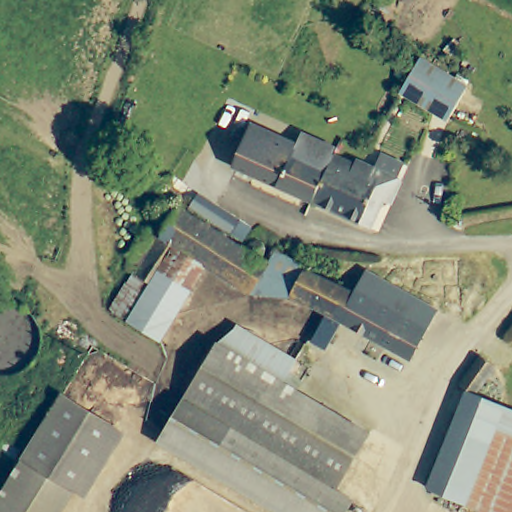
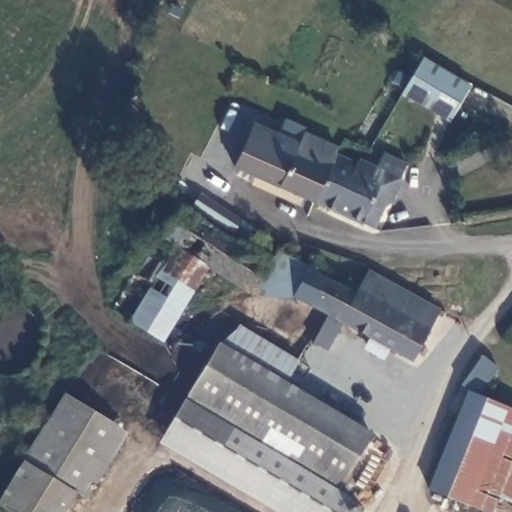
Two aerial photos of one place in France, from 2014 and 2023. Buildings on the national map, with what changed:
unchanged [(406,84),(420,62),(425,56),(471,86),(470,87),(449,120),(403,89),(406,84)]
unchanged [(315,203),(237,164),(258,122),(302,145),(308,134),(340,150),(335,160),(335,161),(315,203)]
unchanged [(369,225),(320,206),(315,203),(335,161),(336,159),(339,153),(362,164),(364,159),(410,182),(405,193),(399,209),(393,207),(386,222),(383,230),(369,225)]
unchanged [(196,209),(186,202),(194,189),(250,222),(245,230),(244,229),(240,234),(196,209)]
unchanged [(159,235),(175,205),(246,246),(247,244),(247,242),(248,240),(249,239),(250,238),(251,237),(253,236),(255,236),(256,236),(257,236),(259,236),(260,237),(262,238),(263,240),(264,240),(265,242),(265,244),(265,245),(265,246),(265,247),(265,249),(264,250),(263,251),(262,252),(260,254),(268,259),(251,290),(206,265),(159,235)]
unchanged [(164,342),(112,314),(132,275),(124,270),(148,230),(159,235),(206,265),(164,342)]
unchanged [(268,259),(275,247),(305,263),(302,270),(290,296),(251,290),(268,259)]
unchanged [(340,320),(290,296),(302,270),(351,295),(340,320)]
unchanged [(351,295),(362,271),(378,280),(438,308),(412,358),(340,320),(351,295)]
unchanged [(291,365),(280,387),(364,437),(332,496),(181,406),(212,350),(234,332),(291,365)]
unchanged [(474,391),(466,387),(467,385),(488,357),(503,370),(483,393),(512,406),(512,434),(497,428),(468,504),(431,491),(460,421),(474,391)]
unchanged [(79,490),(27,458),(66,395),(117,427),(79,490)]
unchanged [(347,505),(343,512),(284,512),(162,440),(181,406),(332,496),(347,505)]
unchanged [(490,512),(468,504),(497,428),(512,434),(512,512),(490,512)]
unchanged [(65,512),(0,512),(0,502),(25,461),(77,493),(65,512)]

